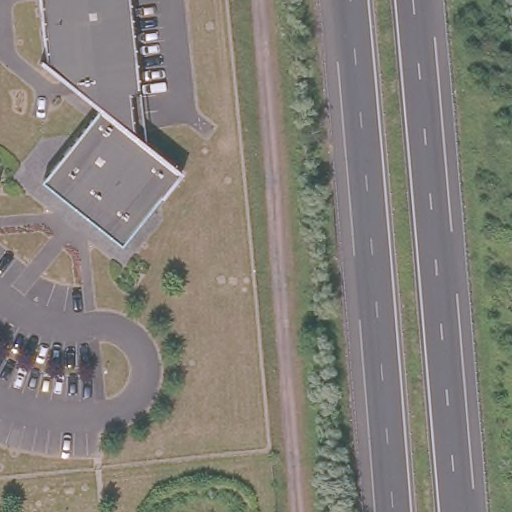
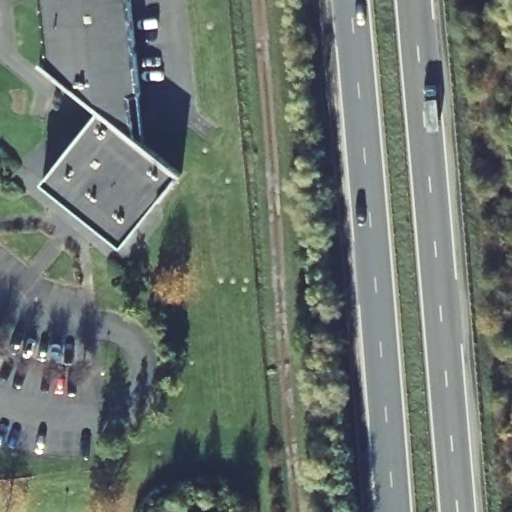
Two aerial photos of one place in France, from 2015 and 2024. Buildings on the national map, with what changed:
unchanged [(140,91),(130,93),(135,134),(180,169),(122,242),(41,181),(98,110),(38,65),(46,64),(40,0),(130,0),(140,91)]

